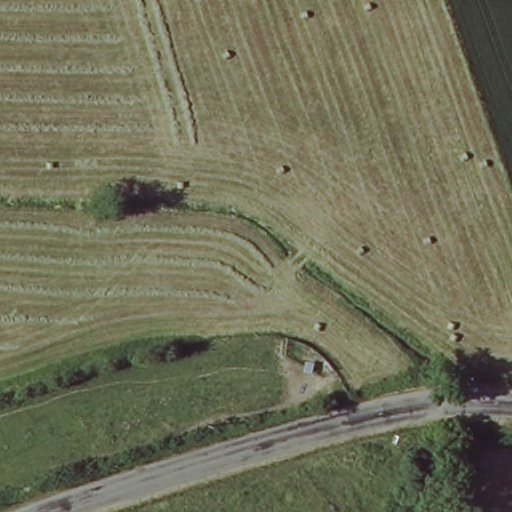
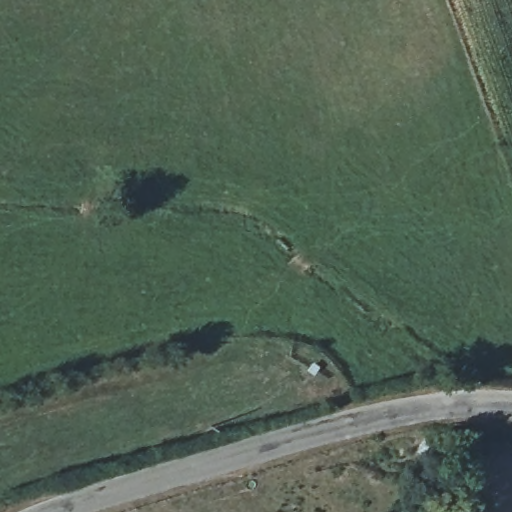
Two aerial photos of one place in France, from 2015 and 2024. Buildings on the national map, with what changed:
[]

